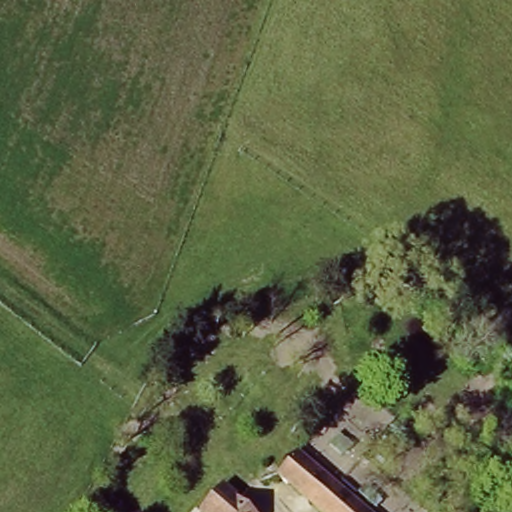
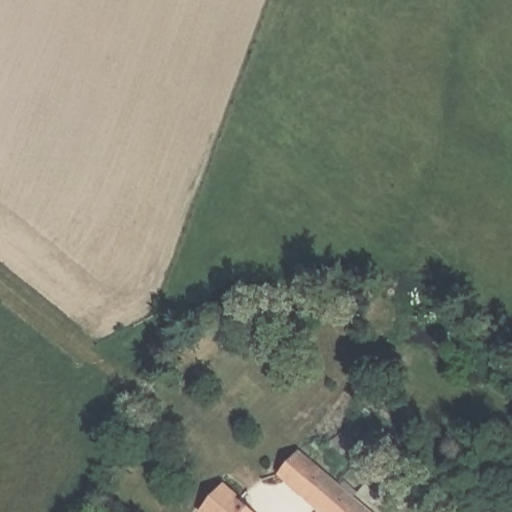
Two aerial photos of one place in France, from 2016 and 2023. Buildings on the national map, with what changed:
unchanged [(368,512),(322,512),(280,476),(299,453),(368,512)]
unchanged [(247,512),(210,512),(227,493),(247,512)]

